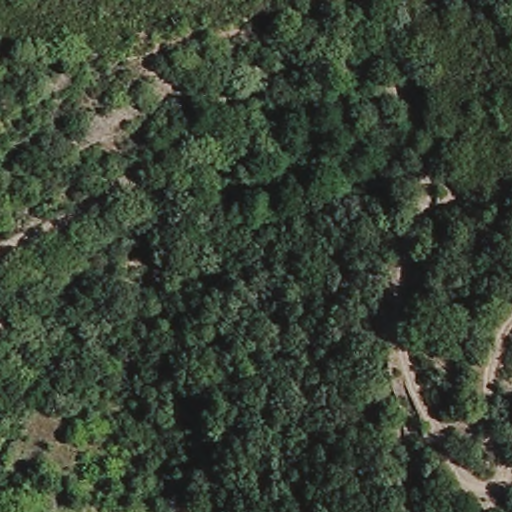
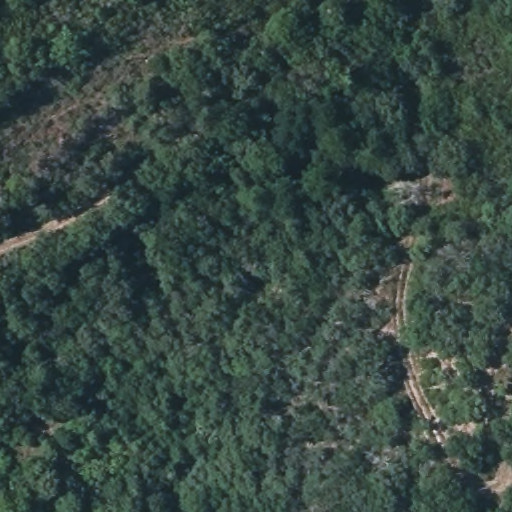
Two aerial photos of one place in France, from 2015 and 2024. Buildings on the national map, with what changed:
unchanged [(208,504),(213,512),(198,512),(208,504)]

